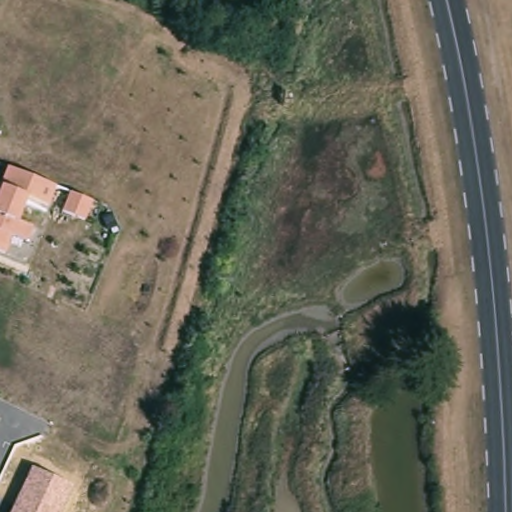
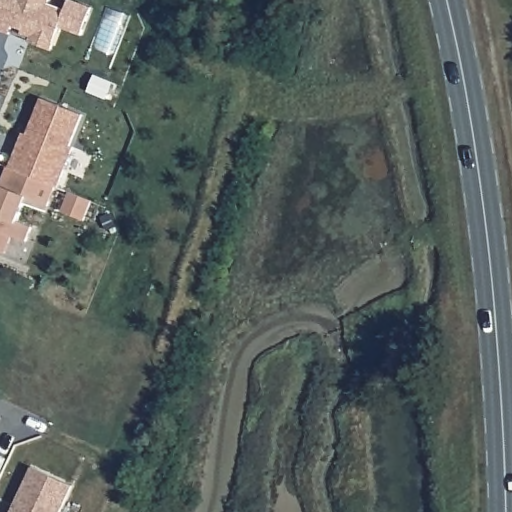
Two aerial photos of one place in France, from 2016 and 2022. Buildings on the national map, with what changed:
new [(50,5),(68,12),(72,0),(94,9),(84,36),(63,27),(54,51),(32,42),(34,37),(24,34),(25,30),(15,27),(12,35),(0,30),(0,6),(2,0),(52,0),(50,5)]
new [(73,147),(57,187),(9,170),(21,132),(27,134),(41,98),(83,114),(70,146),(73,147)]
unchanged [(55,186),(44,211),(24,202),(16,225),(30,230),(26,245),(8,241),(2,255),(0,254),(0,182),(4,169),(55,186)]
new [(73,192),(94,201),(86,221),(65,212),(73,192)]
unchanged [(73,486),(61,512),(11,512),(32,468),(73,486)]

